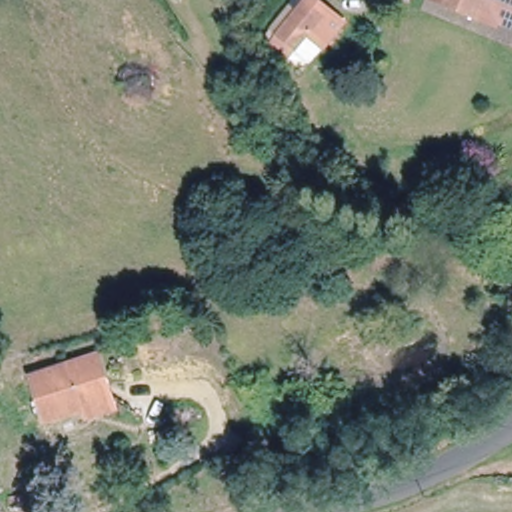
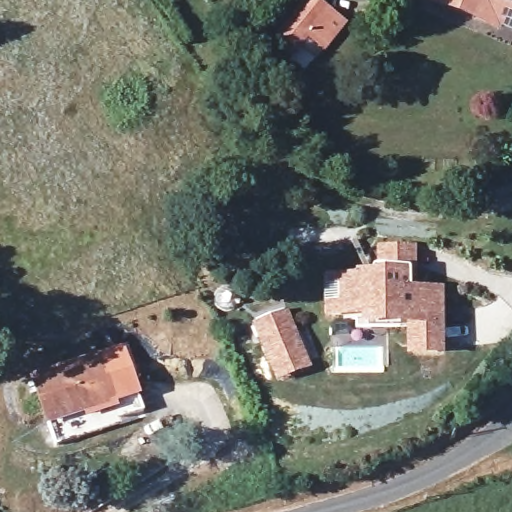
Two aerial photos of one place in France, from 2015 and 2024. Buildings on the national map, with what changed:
unchanged [(486,2),(477,19),(434,5),(435,0),(512,0),(512,10),(486,2)]
unchanged [(347,36),(319,52),(310,35),(281,50),(272,32),(327,1),(347,36)]
new [(356,273),(356,270),(377,270),(378,243),(417,244),(416,287),(444,287),(444,358),(405,359),(405,328),(361,327),(361,317),(323,318),(324,273),(356,273)]
new [(311,369),(277,383),(253,323),(289,309),(311,369)]
new [(125,349),(140,391),(114,400),(100,356),(125,349)]
unchanged [(49,425),(33,378),(100,356),(114,400),(49,425)]

